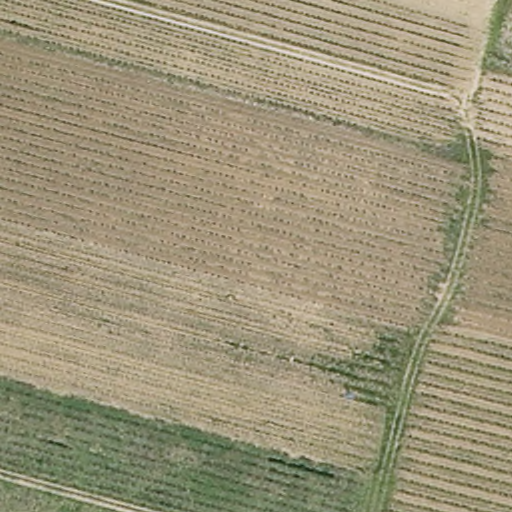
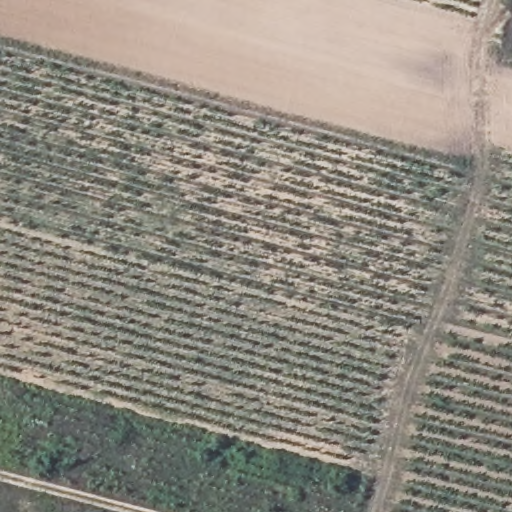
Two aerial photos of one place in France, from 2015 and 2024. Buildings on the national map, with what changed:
[]

